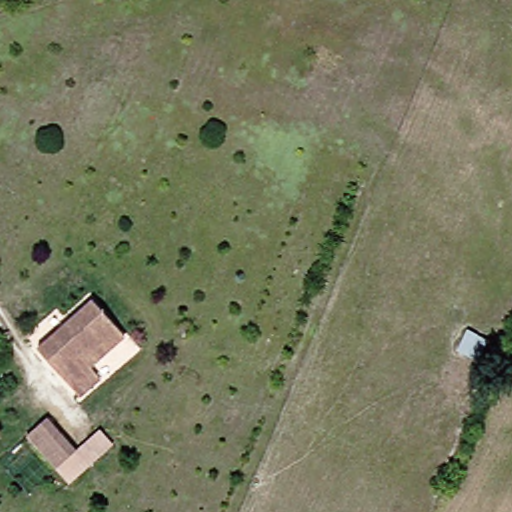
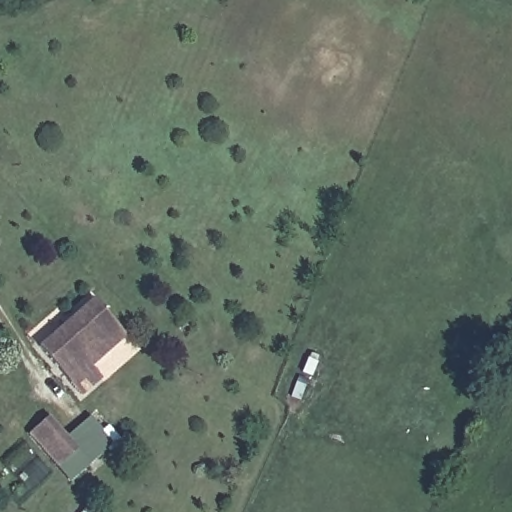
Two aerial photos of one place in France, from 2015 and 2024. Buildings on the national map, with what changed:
unchanged [(129,332),(95,364),(106,377),(86,397),(44,349),(100,298),(129,332)]
unchanged [(494,339),(480,372),(470,368),(471,363),(460,360),(472,330),(494,339)]
unchanged [(51,417),(79,450),(61,467),(33,435),(51,417)]

